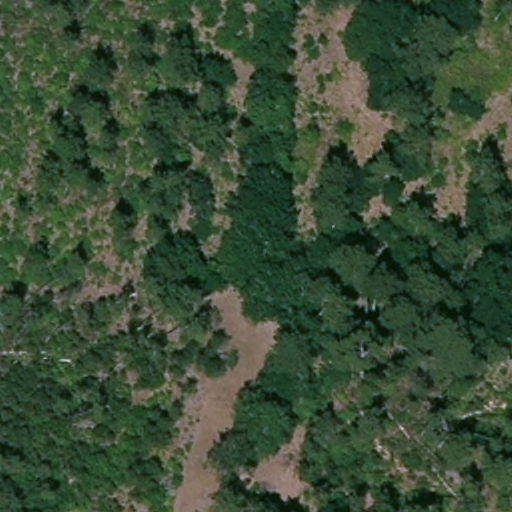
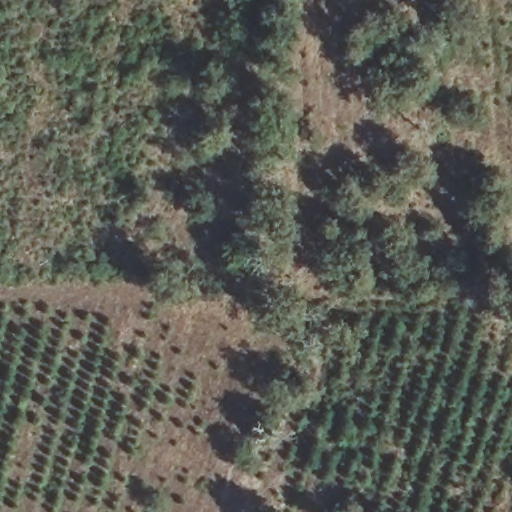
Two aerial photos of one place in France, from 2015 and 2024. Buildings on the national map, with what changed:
[]

